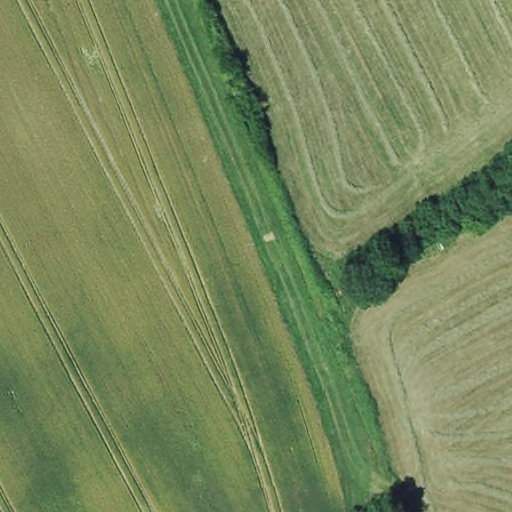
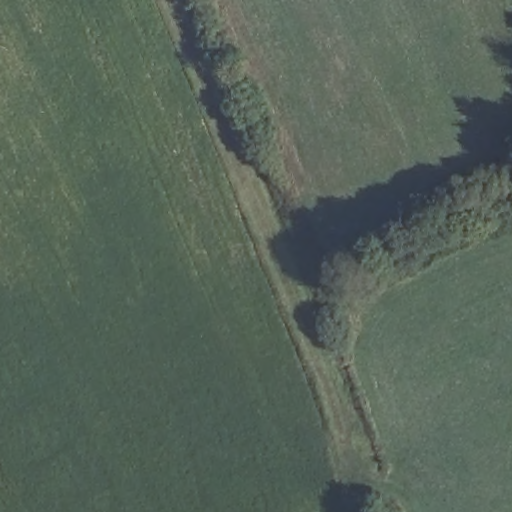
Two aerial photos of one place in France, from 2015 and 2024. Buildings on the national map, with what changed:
[]

